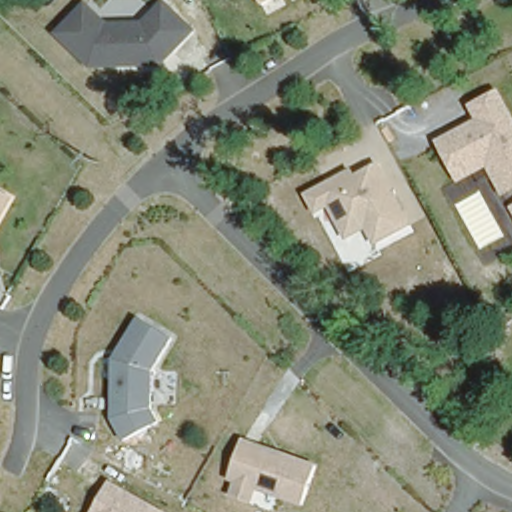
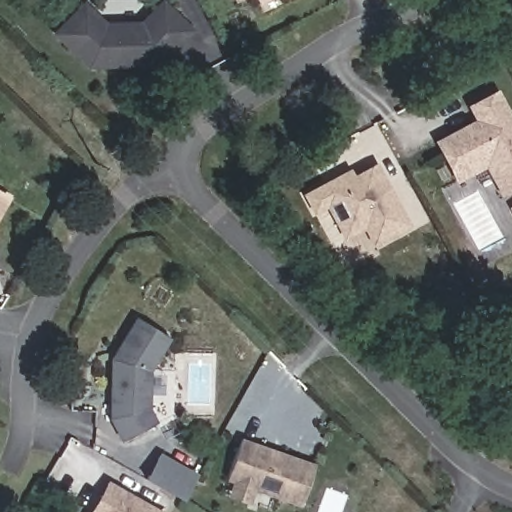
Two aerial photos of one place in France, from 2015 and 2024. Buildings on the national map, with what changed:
unchanged [(164,67),(89,70),(54,32),(85,1),(108,23),(144,23),(164,0),(196,30),(164,67)]
unchanged [(257,0),(271,0),(259,6),(257,0)]
unchanged [(512,193),(503,198),(487,169),(456,184),(434,141),(476,121),(468,106),(499,90),(512,114),(512,193)]
unchanged [(374,247),(365,230),(343,241),(327,210),(314,216),(301,193),(350,167),(354,175),(378,164),(413,227),(374,247)]
unchanged [(0,222),(0,190),(14,197),(0,222)]
unchanged [(512,204),(512,214),(508,206),(512,204)]
unchanged [(152,371),(151,408),(159,422),(120,443),(110,417),(111,360),(138,317),(173,338),(152,371)]
unchanged [(303,507),(254,491),(249,506),(227,498),(232,482),(225,481),(240,438),(317,465),(303,507)]
new [(182,501),(145,479),(159,451),(197,473),(182,501)]
unchanged [(105,480),(166,512),(88,512),(105,480)]

